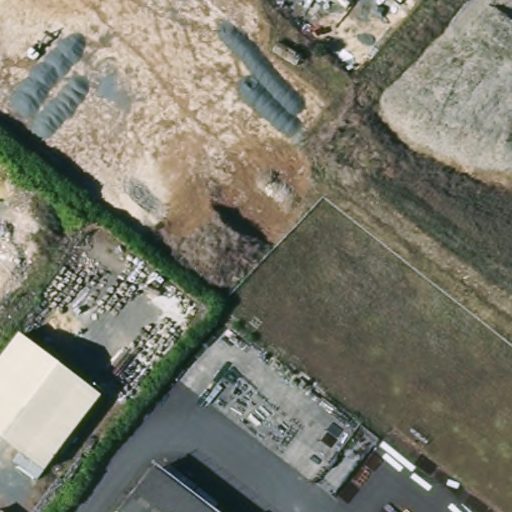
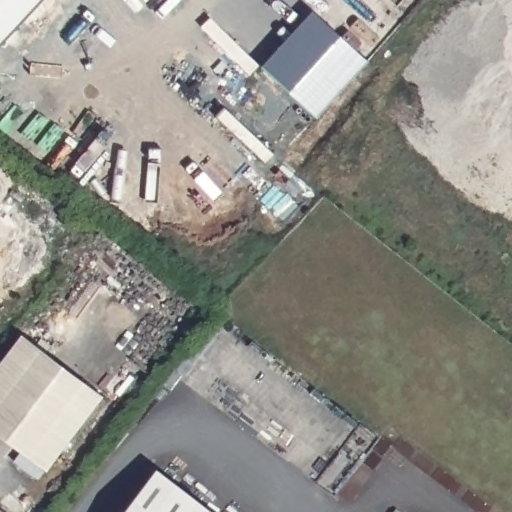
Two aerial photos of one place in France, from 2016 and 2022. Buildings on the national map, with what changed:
new [(308,14),(362,65),(346,82),(291,31),(308,14)]
new [(291,31),(346,82),(312,121),(257,70),(291,31)]
unchanged [(49,471),(0,434),(0,362),(22,332),(106,396),(49,471)]
unchanged [(204,512),(120,512),(151,471),(204,512)]
unchanged [(330,512),(312,512),(326,493),(338,502),(330,512)]
unchanged [(1,510),(3,512),(0,512),(1,510)]

